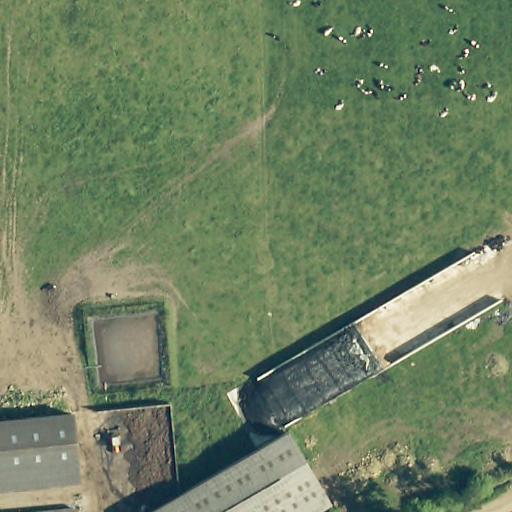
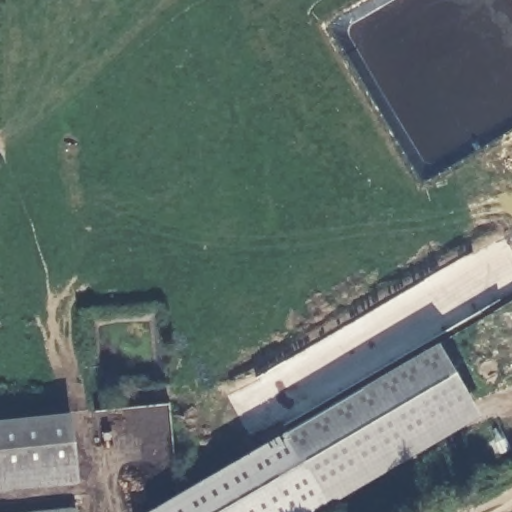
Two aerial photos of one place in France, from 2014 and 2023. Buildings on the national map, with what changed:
new [(439,341),(479,417),(317,512),(145,512),(439,341)]
unchanged [(79,470),(0,478),(0,425),(75,418),(79,470)]
demolished [(186,504),(294,442),(327,497),(303,512),(172,512),(186,504)]
unchanged [(81,512),(17,512),(80,507),(81,512)]

